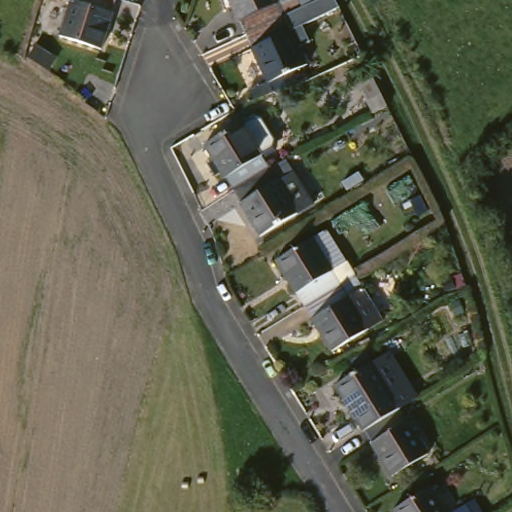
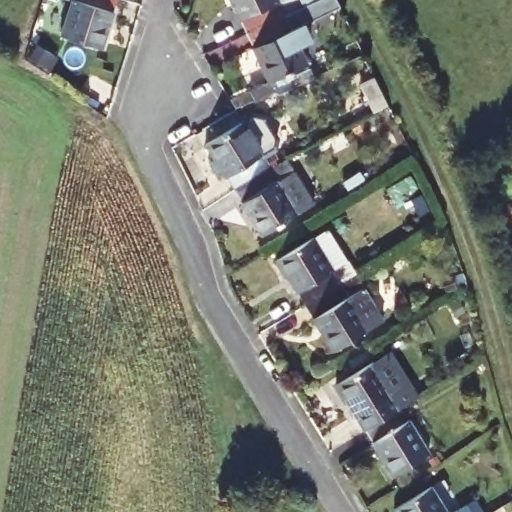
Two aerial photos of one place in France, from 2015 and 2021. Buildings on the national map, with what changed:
unchanged [(64,37),(74,1),(69,0),(122,0),(121,2),(108,50),(64,37)]
unchanged [(228,0),(277,0),(282,8),(299,0),(328,0),(295,16),(287,19),(247,38),(228,0)]
unchanged [(287,19),(295,16),(328,0),(330,0),(338,16),(311,28),(295,36),(310,68),(270,86),(247,38),(287,19)]
unchanged [(272,91),(277,102),(259,110),(254,99),(272,91)]
unchanged [(377,113),(369,98),(383,92),(390,107),(377,113)]
unchanged [(206,149),(245,126),(245,127),(256,120),(266,123),(279,144),(277,153),(266,160),(274,173),(234,196),(206,149)]
unchanged [(291,163),(317,208),(261,241),(234,196),(274,173),(291,163)]
unchanged [(345,290),(307,311),(278,263),(316,241),(335,274),(353,264),(362,280),(345,290)]
unchanged [(345,290),(354,305),(366,298),(384,328),(334,356),(307,311),(345,290)]
unchanged [(387,357),(402,385),(407,382),(415,399),(399,408),(371,424),(360,430),(334,386),(387,357)]
unchanged [(428,457),(390,479),(360,430),(371,424),(399,408),(428,457)]
unchanged [(442,512),(394,512),(392,509),(429,488),(442,512)]
unchanged [(475,499),(482,512),(450,512),(466,503),(475,499)]

